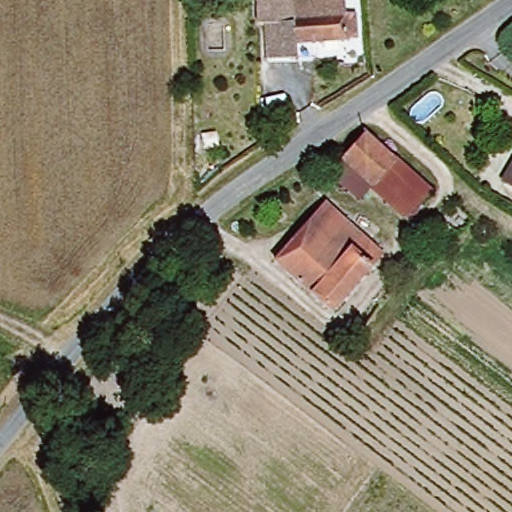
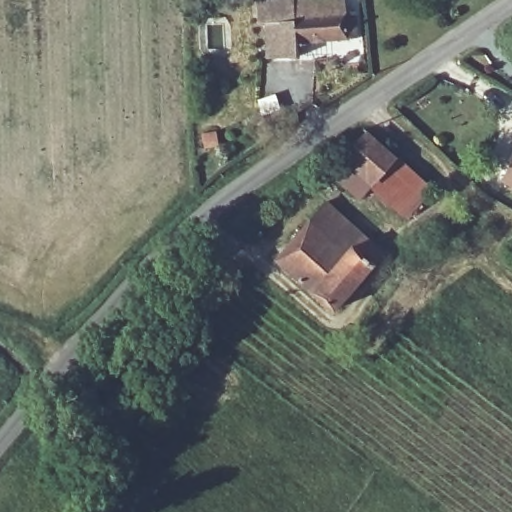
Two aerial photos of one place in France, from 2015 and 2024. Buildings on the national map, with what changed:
unchanged [(352,13),(351,41),(294,46),(293,58),(263,59),(260,28),(252,26),(249,0),(341,0),(341,13),(352,13)]
unchanged [(370,189),(353,202),(329,179),(362,131),(391,155),(432,189),(404,219),(370,189)]
unchanged [(512,179),(512,190),(508,188),(512,179)]
unchanged [(377,252),(330,309),(273,262),(321,204),(377,252)]
unchanged [(135,334),(147,342),(129,365),(119,357),(135,334)]

